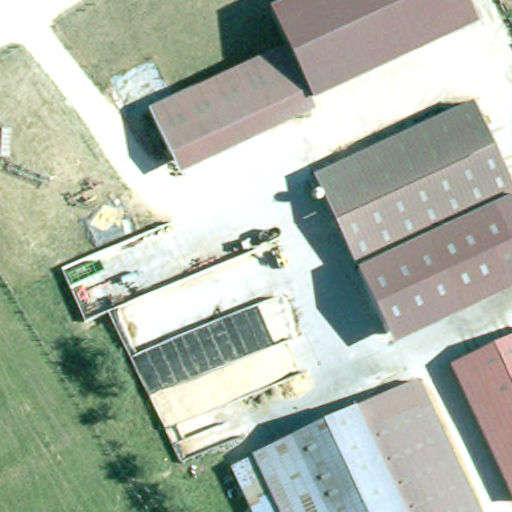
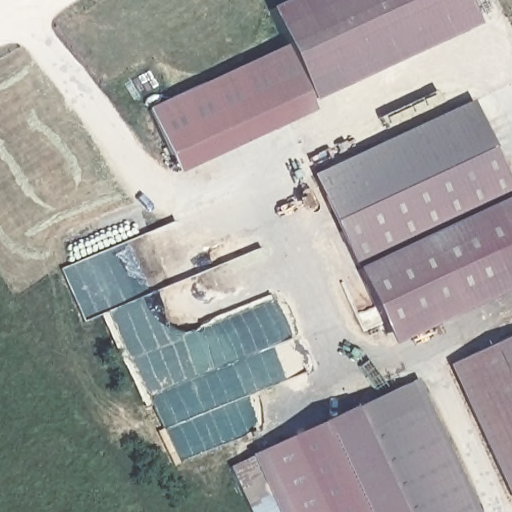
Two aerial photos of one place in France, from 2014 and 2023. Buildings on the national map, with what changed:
unchanged [(290,47),(269,6),(281,0),(461,0),(472,26),(312,93),(290,47)]
unchanged [(174,157),(152,110),(290,47),(312,93),(174,157)]
unchanged [(183,174),(174,157),(312,93),(316,104),(320,111),(183,174)]
unchanged [(350,262),(308,171),(467,97),(510,188),(350,262)]
unchanged [(377,316),(353,266),(512,189),(512,281),(510,282),(388,340),(377,318),(377,316)]
unchanged [(512,495),(510,496),(446,360),(512,329),(512,495)]
unchanged [(476,512),(475,512),(278,512),(250,451),(412,375),(476,512)]
unchanged [(250,451),(278,512),(249,512),(225,462),(250,451)]

